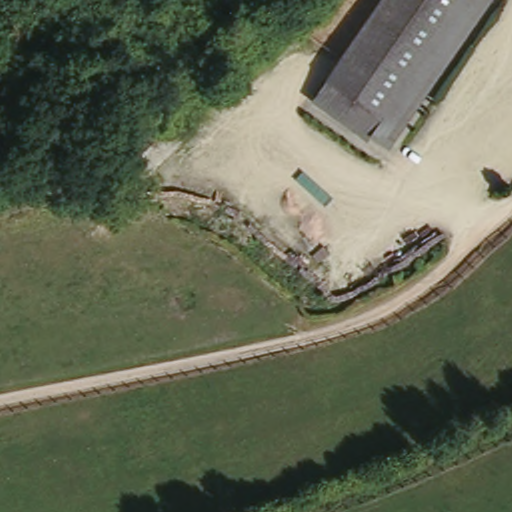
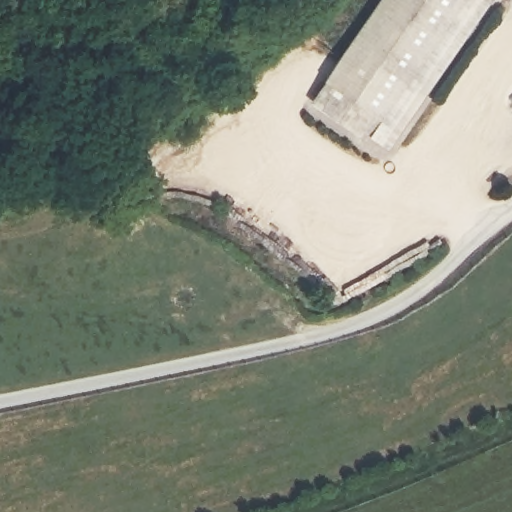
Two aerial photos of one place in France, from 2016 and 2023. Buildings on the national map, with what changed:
unchanged [(390,153),(372,142),(367,148),(311,109),(383,0),(498,0),(390,153)]

